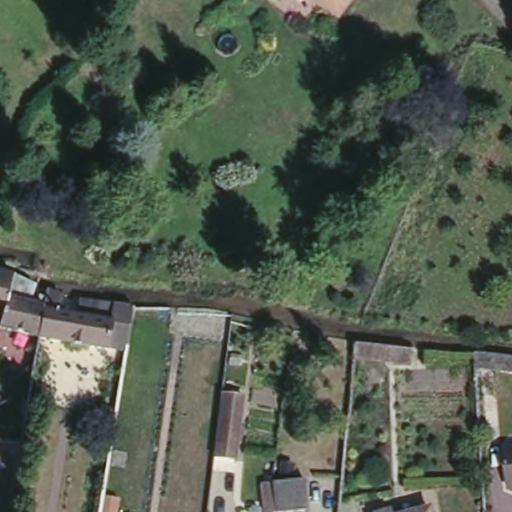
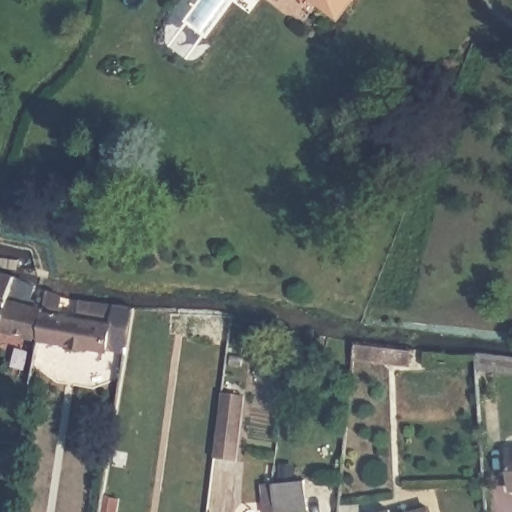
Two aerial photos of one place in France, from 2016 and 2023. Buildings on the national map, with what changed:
unchanged [(328,11),(317,0),(338,0),(328,11)]
unchanged [(32,276),(30,294),(44,298),(39,323),(37,333),(0,327),(0,316),(1,309),(0,309),(0,270),(32,276)]
unchanged [(59,289),(57,308),(76,311),(78,294),(132,298),(132,312),(125,344),(107,341),(107,345),(37,333),(39,323),(44,298),(44,293),(45,289),(46,285),(59,289)]
unchanged [(26,360),(25,365),(2,361),(5,340),(28,343),(26,360)]
unchanged [(411,349),(408,365),(353,360),(353,344),(411,349)]
unchanged [(512,374),(470,371),(472,353),(512,358),(512,374)]
unchanged [(247,391),(243,456),(214,455),(221,389),(247,391)]
unchanged [(506,445),(512,445),(512,483),(509,483),(506,445)]
unchanged [(277,469),(301,468),(301,476),(307,476),(309,505),(277,508),(268,509),(245,511),(243,481),(275,478),(277,469)]
unchanged [(117,493),(114,512),(98,512),(102,491),(117,493)]
unchanged [(431,512),(398,512),(429,504),(431,512)]

